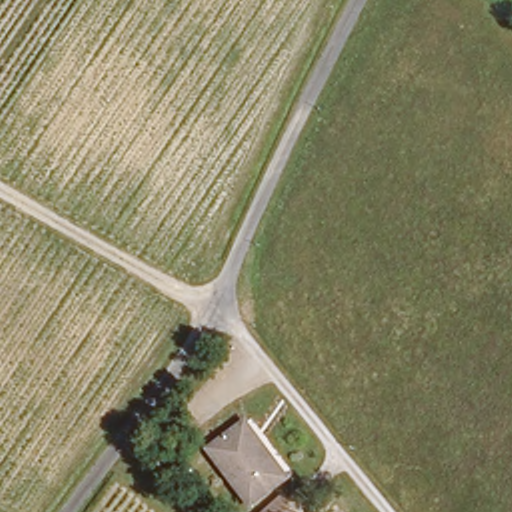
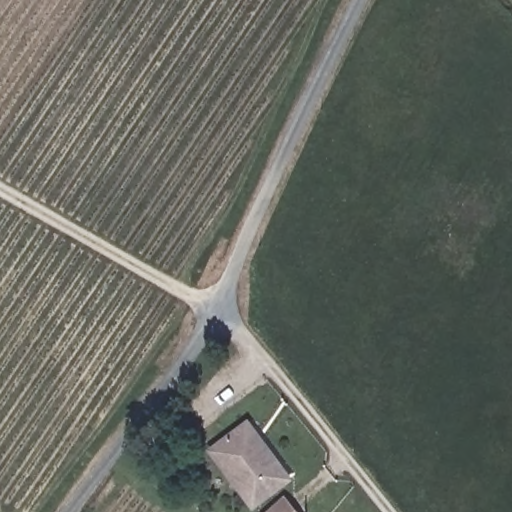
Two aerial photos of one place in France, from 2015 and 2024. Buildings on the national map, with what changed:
unchanged [(249,505),(209,450),(236,430),(244,424),(257,442),(284,479),(249,505)]
unchanged [(279,498),(293,512),(265,512),(279,498)]

